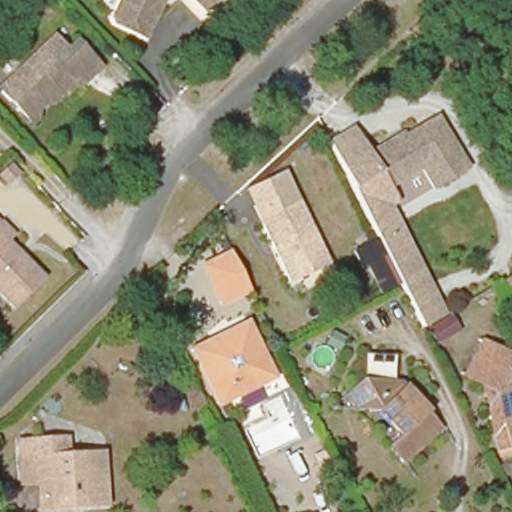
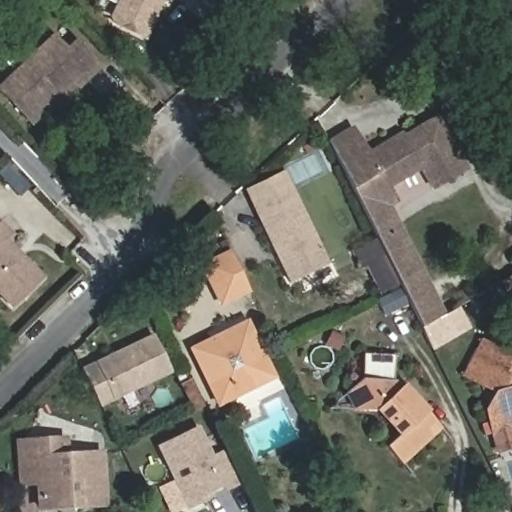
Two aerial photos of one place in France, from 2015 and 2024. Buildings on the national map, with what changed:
unchanged [(116,20),(127,0),(170,0),(150,37),(116,20)]
unchanged [(197,5),(193,0),(212,0),(202,10),(197,5)]
unchanged [(69,57),(78,49),(100,71),(80,91),(75,87),(61,100),(57,96),(31,122),(3,92),(54,42),(69,57)]
unchanged [(434,115),(463,166),(435,182),(406,131),(434,115)]
unchanged [(362,151),(382,186),(389,181),(402,202),(394,206),(448,314),(421,328),(396,282),(375,239),(328,141),(355,125),(370,147),(362,151)]
unchanged [(429,186),(417,164),(389,181),(382,186),(362,151),(370,147),(387,137),(394,139),(406,131),(435,182),(429,186)]
unchanged [(0,166),(9,176),(0,186),(0,166)]
unchanged [(259,221),(244,190),(282,173),(297,203),(259,221)]
unchanged [(327,264),(289,283),(259,221),(297,203),(327,264)]
unchanged [(7,232),(4,237),(7,240),(0,248),(0,225),(7,232)]
unchanged [(376,291),(363,262),(357,265),(350,250),(375,239),(396,282),(376,291)]
unchanged [(10,305),(0,295),(0,248),(7,240),(40,273),(10,305)]
new [(225,252),(243,290),(215,303),(197,266),(225,252)]
unchanged [(493,282),(512,271),(512,298),(506,302),(493,282)]
unchanged [(276,377),(220,404),(196,350),(250,323),(276,377)]
new [(81,367),(152,333),(172,373),(100,407),(81,367)]
unchanged [(488,416),(493,408),(487,387),(465,376),(484,340),(512,354),(512,436),(495,441),(488,416)]
unchanged [(395,377),(406,383),(446,429),(406,464),(388,442),(400,427),(382,408),(365,407),(364,351),(395,352),(395,377)]
new [(241,483),(226,491),(223,487),(212,492),(213,496),(185,508),(156,446),(198,425),(213,455),(225,450),(241,483)]
unchanged [(39,486),(23,487),(21,474),(19,443),(49,440),(63,439),(65,455),(101,452),(107,510),(86,511),(66,512),(42,512),(39,486)]

